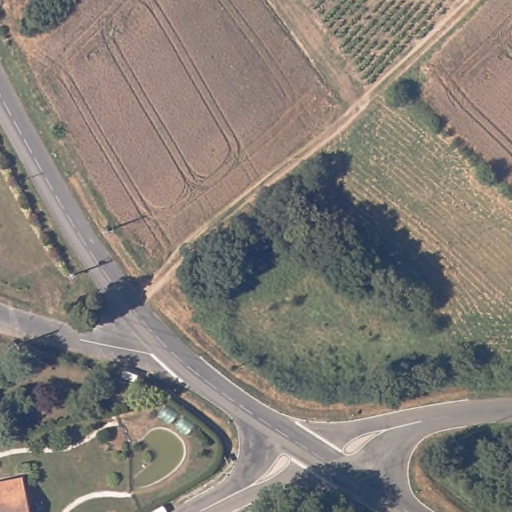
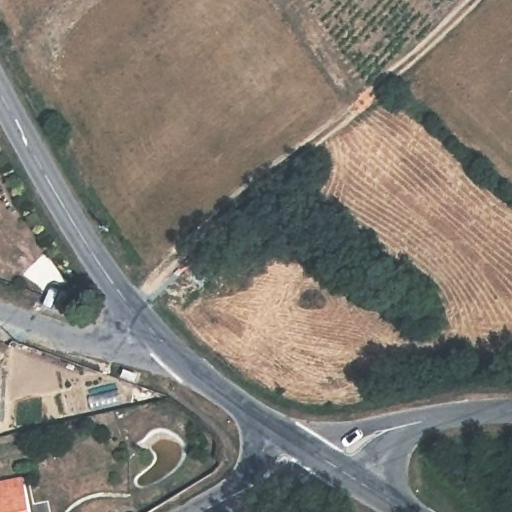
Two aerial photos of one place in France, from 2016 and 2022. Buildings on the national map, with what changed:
unchanged [(25,480),(31,512),(0,512),(0,484),(25,480)]

